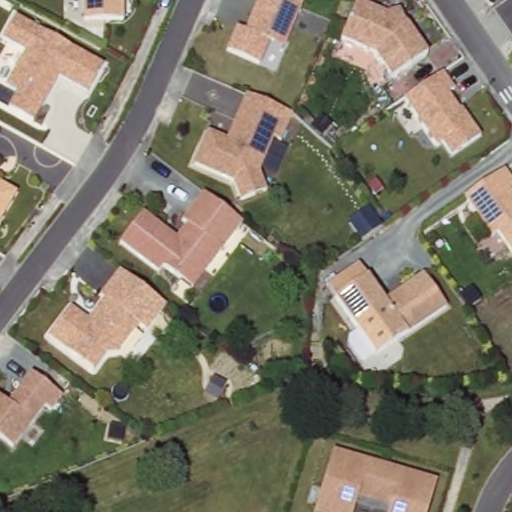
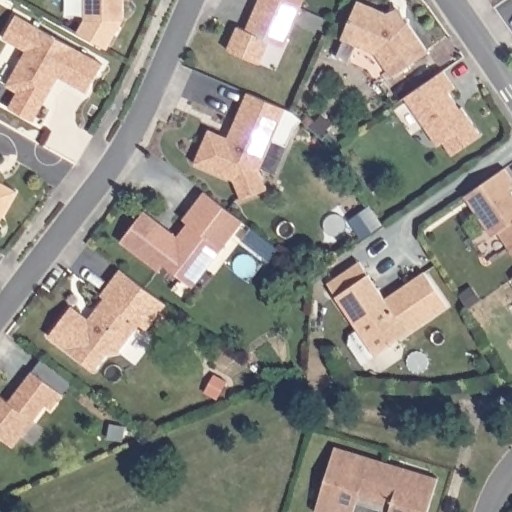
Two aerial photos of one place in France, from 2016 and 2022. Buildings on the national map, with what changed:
unchanged [(122,0),(122,20),(83,19),(83,0),(122,0)]
unchanged [(246,31),(257,0),(305,0),(285,51),(267,44),(260,65),(223,51),(232,26),(246,31)]
unchanged [(357,1),(407,22),(427,51),(391,76),(375,53),(340,39),(357,1)]
unchanged [(106,64),(91,93),(62,76),(35,123),(10,110),(17,96),(8,88),(25,54),(2,40),(16,14),(106,64)]
unchanged [(442,71),(454,88),(447,93),(459,109),(461,108),(480,136),(451,156),(442,142),(437,146),(404,98),(442,71)]
unchanged [(234,180),(196,164),(206,131),(230,139),(248,93),(293,114),(280,141),(273,138),(258,173),(267,191),(240,202),(234,180)]
unchanged [(464,196),(490,178),(505,168),(512,179),(512,186),(509,188),(512,192),(512,252),(498,232),(492,237),(464,196)]
unchanged [(0,223),(0,185),(18,195),(0,223)]
unchanged [(180,279),(162,265),(157,271),(120,242),(142,212),(176,238),(187,224),(182,220),(203,192),(241,221),(205,269),(191,287),(180,279)]
unchanged [(65,303),(87,320),(104,298),(100,295),(119,269),(165,304),(145,330),(138,325),(117,353),(101,351),(89,367),(44,333),(65,303)]
unchanged [(336,297),(367,277),(383,300),(425,272),(448,310),(375,355),(336,297)]
unchanged [(0,396),(6,401),(31,372),(62,398),(55,412),(45,406),(14,446),(0,435),(0,396)]
unchanged [(437,476),(427,512),(389,512),(390,511),(361,502),(358,512),(319,512),(317,512),(337,444),(437,476)]

